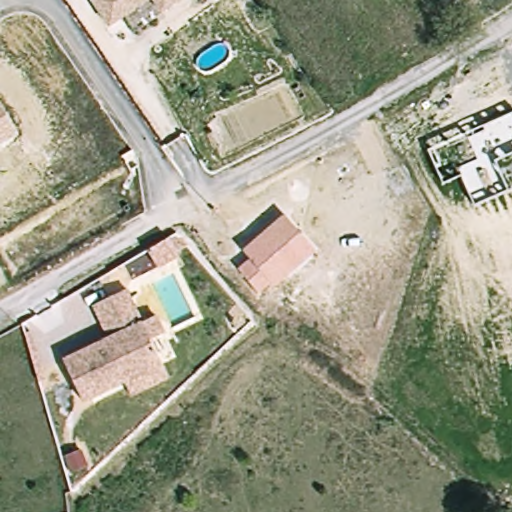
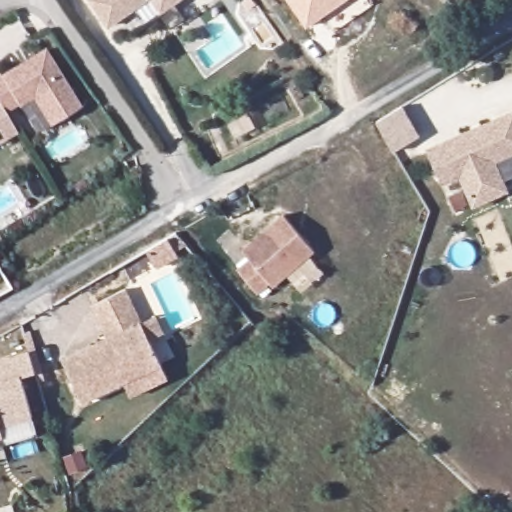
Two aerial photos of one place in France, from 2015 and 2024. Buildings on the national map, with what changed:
unchanged [(155,5),(112,35),(93,7),(103,0),(196,0),(179,11),(165,21),(155,5)]
new [(305,26),(287,0),(343,0),(305,26)]
new [(80,108),(49,127),(32,99),(5,114),(0,105),(0,75),(45,48),(80,108)]
unchanged [(0,146),(0,106),(17,135),(0,146)]
new [(393,106),(409,139),(387,150),(372,118),(393,106)]
new [(512,112),(512,155),(497,161),(510,192),(472,208),(459,178),(442,185),(427,148),(512,112)]
unchanged [(274,287),(270,283),(258,293),(238,268),(249,259),(242,251),(284,214),(315,251),(274,287)]
unchanged [(183,252),(160,263),(152,246),(174,234),(183,252)]
unchanged [(127,394),(122,380),(80,400),(60,358),(107,336),(91,303),(124,286),(140,319),(155,313),(162,332),(150,339),(160,361),(167,375),(127,394)]
new [(32,374),(18,378),(29,419),(0,427),(0,362),(27,354),(32,374)]

